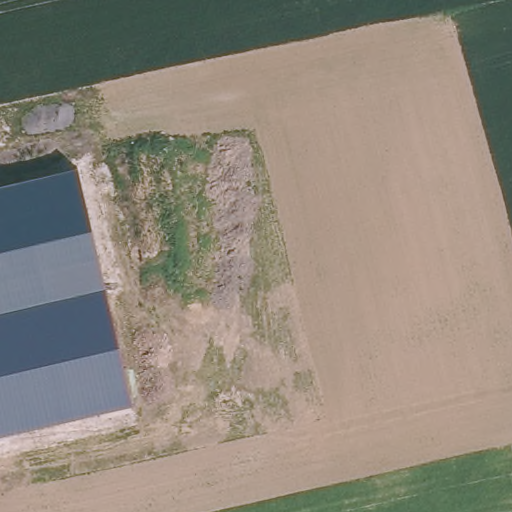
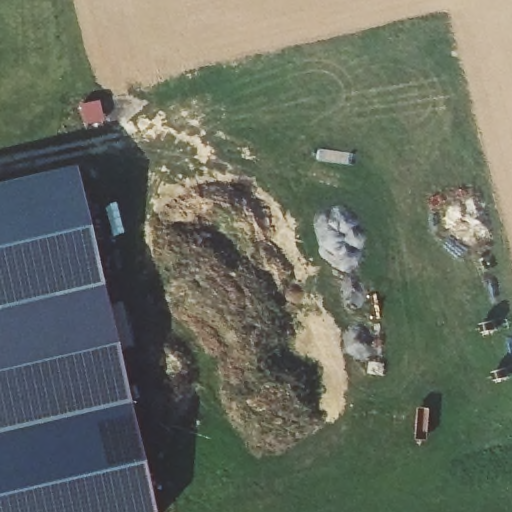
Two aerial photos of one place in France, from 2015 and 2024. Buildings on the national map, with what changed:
unchanged [(129,403),(0,433),(0,181),(73,164),(129,403)]
new [(129,403),(155,512),(0,512),(0,433),(129,403)]

